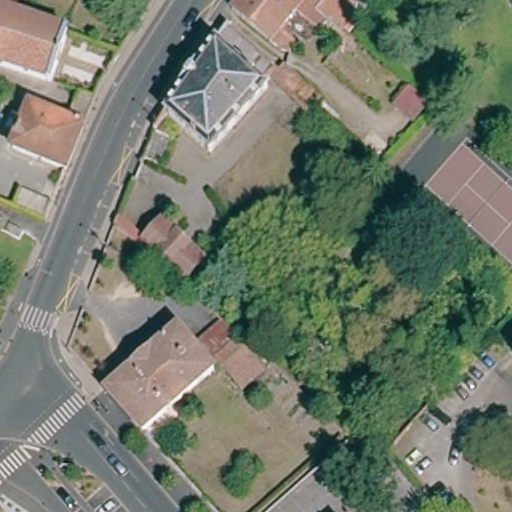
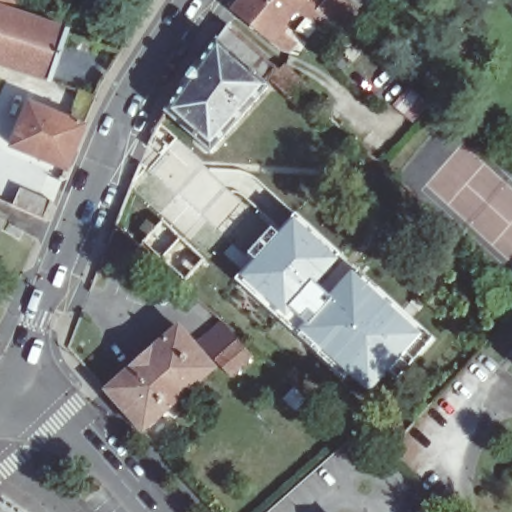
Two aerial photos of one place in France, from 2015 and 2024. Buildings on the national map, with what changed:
unchanged [(30,10),(27,23),(68,36),(51,83),(0,66),(0,0),(19,0),(17,4),(30,10)]
unchanged [(331,15),(319,30),(296,12),(285,24),(302,39),(290,53),(280,50),(234,14),(231,11),(240,0),(306,0),(318,10),(326,0),(343,0),(358,15),(344,29),(331,15)]
unchanged [(349,35),(346,30),(353,24),(356,27),(349,35)]
unchanged [(173,105),(170,103),(191,73),(193,75),(218,40),(266,84),(271,79),(281,88),(276,93),(269,95),(262,89),(256,95),(260,99),(204,161),(160,122),(173,105)]
unchanged [(74,165),(19,144),(37,101),(73,117),(85,86),(103,94),(74,165)]
unchanged [(318,106),(320,109),(313,115),(297,100),(303,93),(318,106)]
unchanged [(53,217),(18,200),(28,183),(61,199),(53,217)]
unchanged [(5,227),(0,223),(0,208),(13,215),(5,227)]
new [(253,260),(247,254),(271,227),(278,233),(293,217),(341,260),(318,285),(329,294),(328,295),(330,298),(295,336),(235,280),(253,260)]
unchanged [(161,221),(203,260),(180,286),(138,247),(161,221)]
new [(330,298),(328,295),(329,294),(351,269),(384,294),(427,334),(406,361),(367,398),(295,336),(330,298)]
unchanged [(124,364),(124,362),(144,342),(146,344),(170,322),(207,364),(138,427),(99,386),(124,364)]
unchanged [(228,371),(212,357),(233,334),(249,348),(228,371)]

